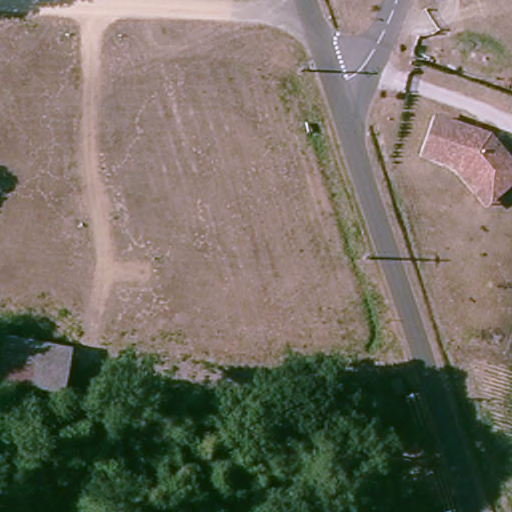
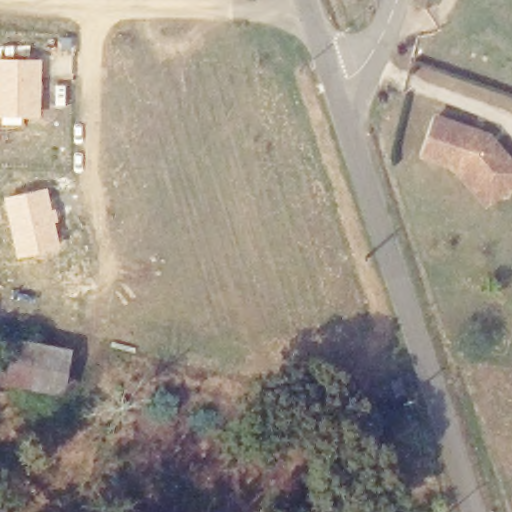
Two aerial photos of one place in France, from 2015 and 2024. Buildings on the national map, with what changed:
new [(40,117),(0,116),(0,58),(41,58),(40,117)]
unchanged [(490,202),(465,173),(470,169),(469,168),(426,153),(440,115),(493,133),(512,156),(512,183),(490,202)]
new [(47,186),(60,247),(16,257),(4,196),(47,186)]
unchanged [(75,402),(0,388),(0,363),(5,337),(86,349),(75,402)]

